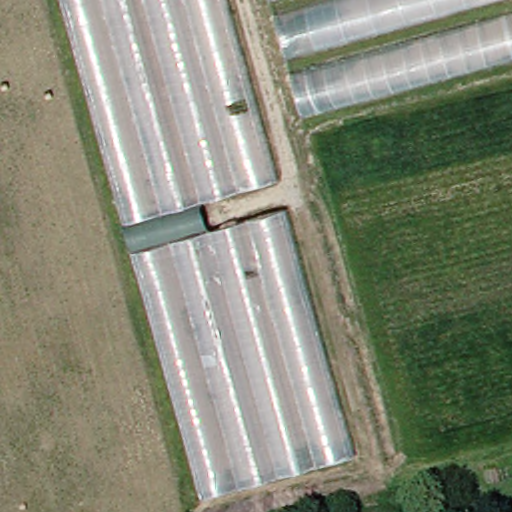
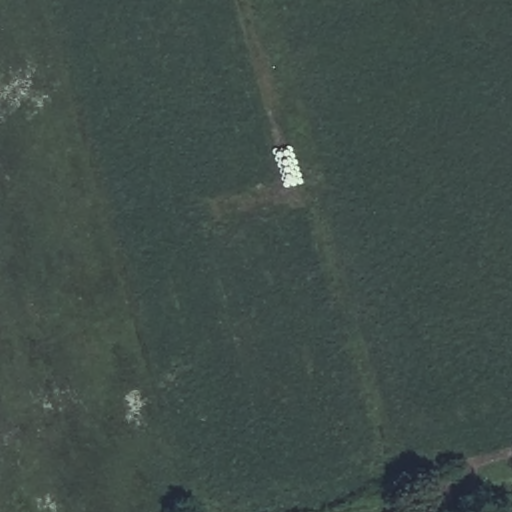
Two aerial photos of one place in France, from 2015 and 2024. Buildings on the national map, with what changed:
demolished [(268,179),(189,200),(197,233),(275,212),(343,457),(192,497),(49,0),(220,0),(268,179)]
demolished [(264,1),(263,0),(269,0),(264,1)]
demolished [(340,0),(480,0),(281,55),(270,20),(340,0)]
demolished [(512,15),(512,59),(293,120),(287,80),(512,15)]

